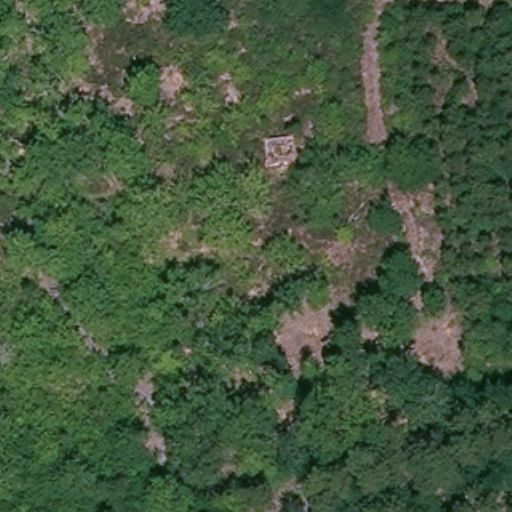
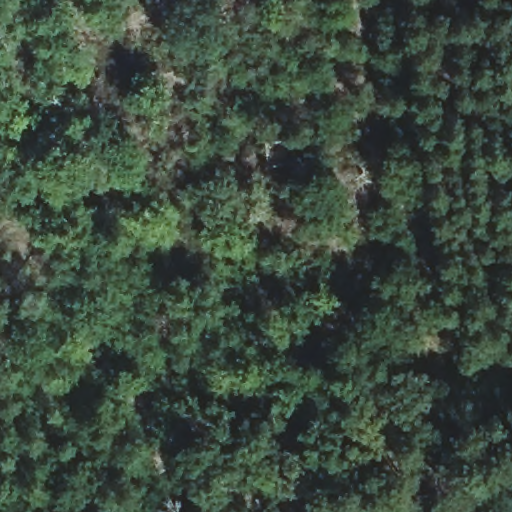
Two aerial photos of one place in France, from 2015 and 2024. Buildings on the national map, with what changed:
unchanged [(265,143),(295,139),(301,171),(267,177),(265,143)]

